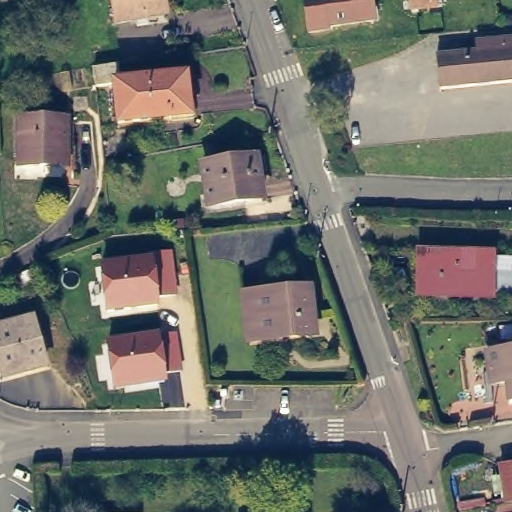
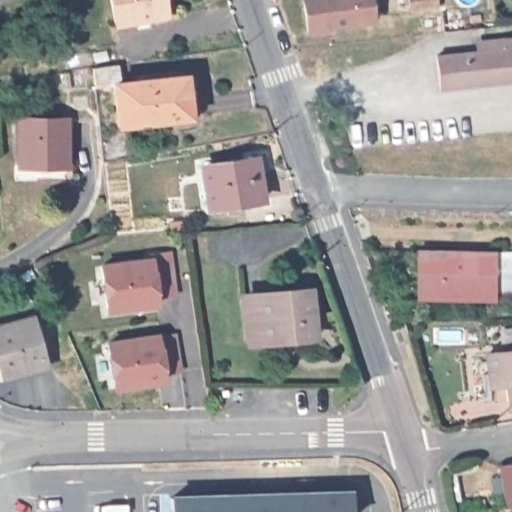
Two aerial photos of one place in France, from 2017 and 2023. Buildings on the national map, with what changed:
unchanged [(160,10),(161,15),(141,19),(141,13),(120,16),(117,0),(169,0),(170,9),(160,10)]
unchanged [(329,23),(329,26),(310,29),(305,0),(370,0),(372,18),(329,23)]
unchanged [(424,10),(423,0),(449,0),(450,9),(424,10)]
unchanged [(430,54),(478,48),(477,38),(512,34),(512,79),(434,87),(430,54)]
unchanged [(195,111),(122,121),(115,80),(98,83),(96,65),(121,61),(123,79),(189,70),(195,111)]
unchanged [(71,151),(64,152),(19,155),(15,112),(60,109),(62,133),(70,132),(71,151)]
unchanged [(258,152),(266,193),(217,201),(209,161),(258,152)]
unchanged [(415,264),(416,244),(487,245),(486,290),(435,289),(416,289),(415,264)]
unchanged [(178,295),(158,297),(159,309),(105,316),(99,264),(151,258),(150,253),(172,249),(178,295)]
unchanged [(300,292),(304,334),(244,340),(239,299),(300,292)]
unchanged [(4,366),(0,353),(0,320),(33,310),(45,354),(4,366)]
unchanged [(183,372),(165,374),(167,386),(113,392),(107,341),(177,332),(183,372)]
unchanged [(506,397),(504,376),(488,378),(485,347),(512,345),(512,396),(506,397)]
unchanged [(495,463),(512,461),(512,500),(502,502),(495,463)]
new [(172,495),(352,489),(353,512),(172,512),(172,495)]

